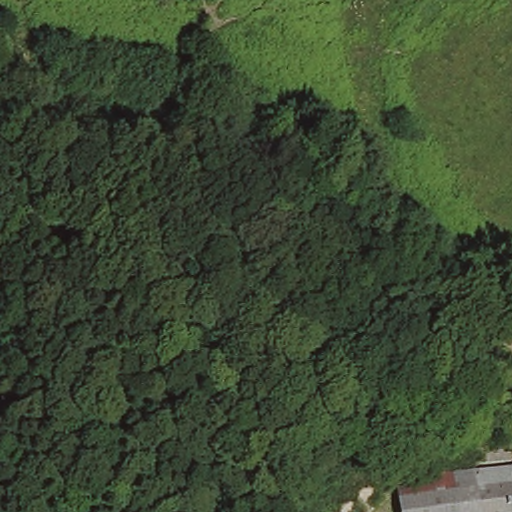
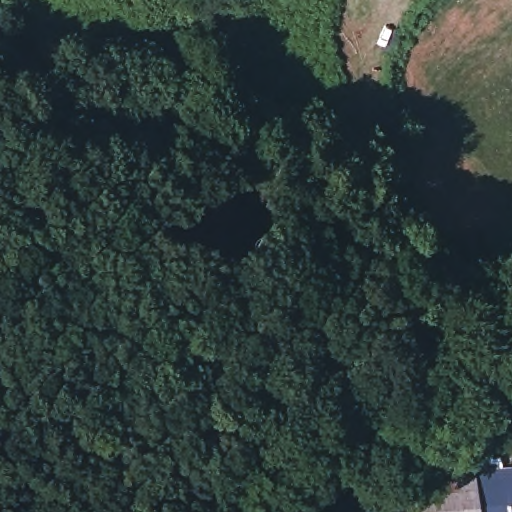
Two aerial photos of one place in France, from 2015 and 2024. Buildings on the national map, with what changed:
unchanged [(387,478),(512,466),(512,512),(391,512),(387,478)]

